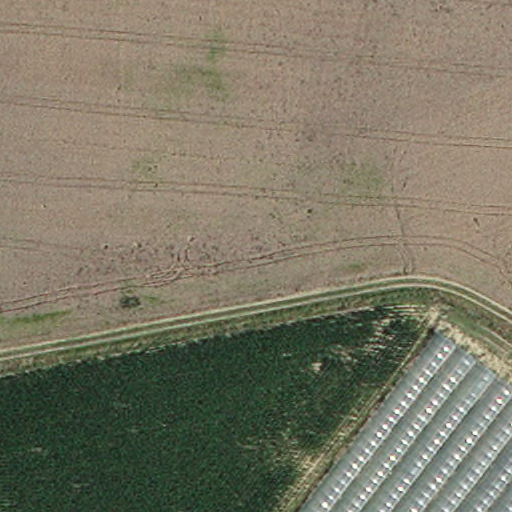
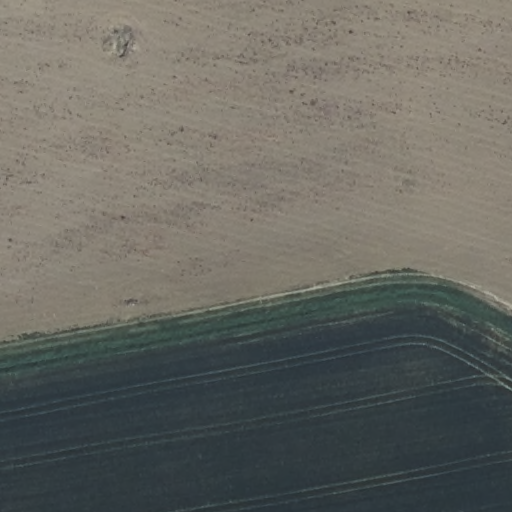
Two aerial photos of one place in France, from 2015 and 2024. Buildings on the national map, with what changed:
demolished [(512,386),(512,512),(306,512),(441,333),(512,386)]

